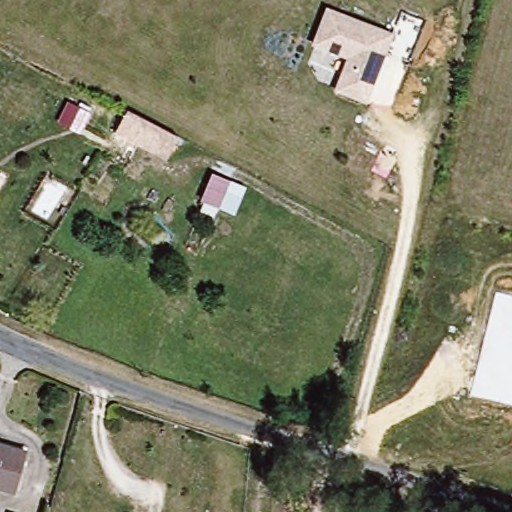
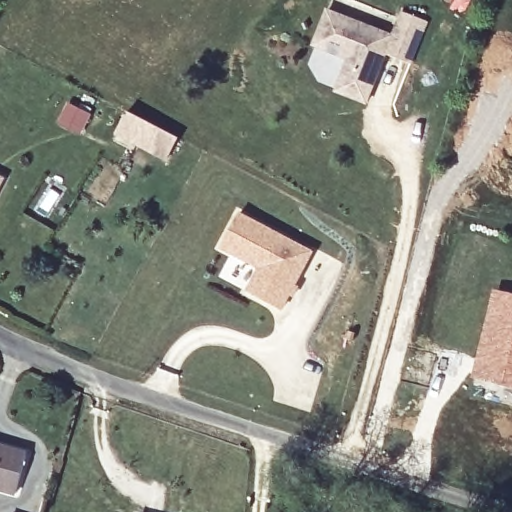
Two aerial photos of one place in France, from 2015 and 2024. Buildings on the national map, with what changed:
unchanged [(365,109),(335,96),(349,64),(314,50),(329,15),(393,41),(365,109)]
unchanged [(76,130),(55,119),(64,104),(84,115),(76,130)]
unchanged [(131,146),(110,134),(122,112),(159,133),(171,140),(163,155),(159,161),(131,146)]
new [(235,216),(307,254),(277,311),(244,293),(256,270),(217,250),(235,216)]
new [(512,297),(512,408),(468,395),(496,292),(512,297)]
unchanged [(15,494),(0,488),(0,446),(30,459),(15,494)]

